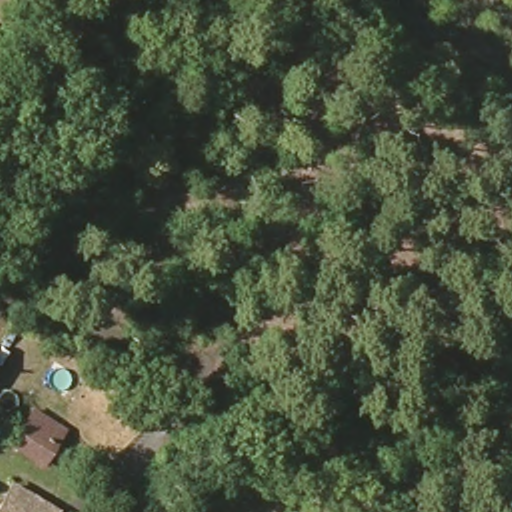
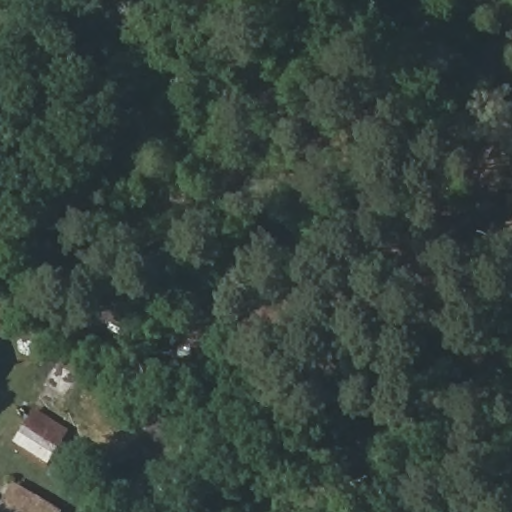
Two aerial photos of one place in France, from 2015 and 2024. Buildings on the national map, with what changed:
unchanged [(62,431),(46,461),(15,444),(35,414),(62,431)]
unchanged [(162,478),(146,466),(171,430),(188,442),(162,478)]
unchanged [(18,484),(62,510),(61,512),(0,512),(0,511),(18,484)]

